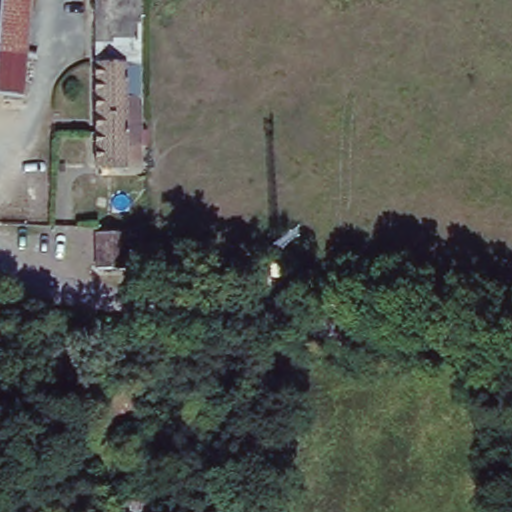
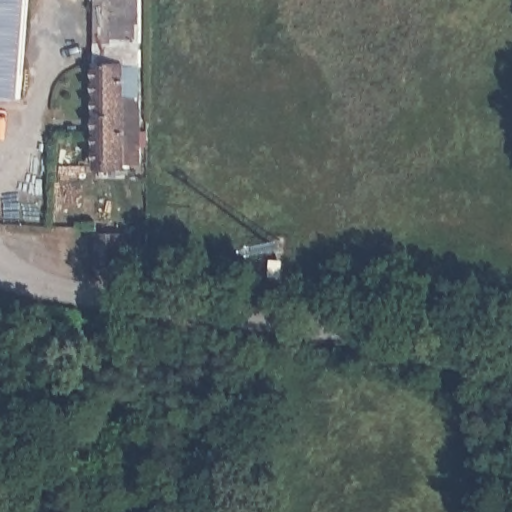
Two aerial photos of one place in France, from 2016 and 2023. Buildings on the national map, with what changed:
unchanged [(23,72),(0,70),(0,0),(29,0),(23,72)]
unchanged [(96,0),(133,0),(135,143),(129,145),(128,162),(100,164),(96,0)]
unchanged [(0,102),(0,70),(23,72),(20,104),(0,102)]
unchanged [(93,231),(123,231),(124,265),(94,266),(93,231)]

